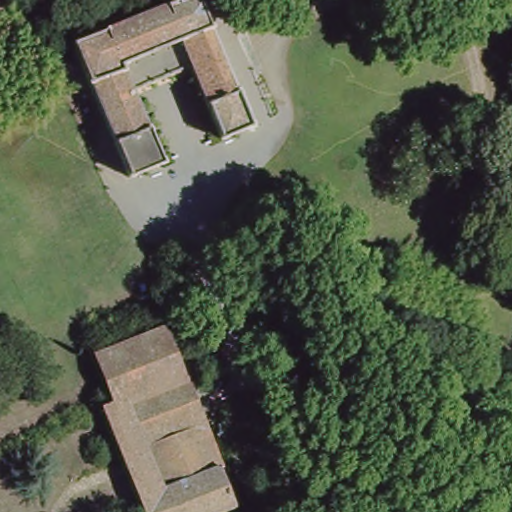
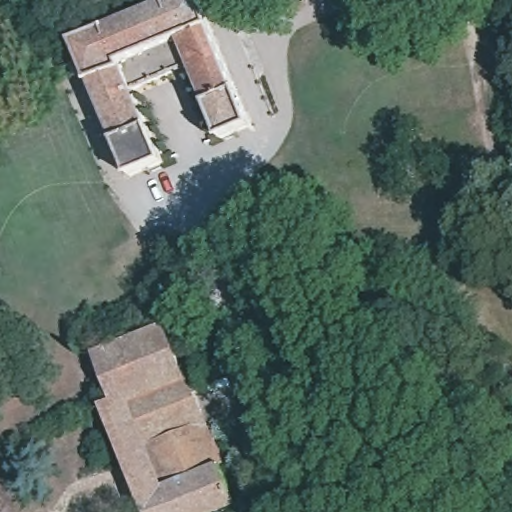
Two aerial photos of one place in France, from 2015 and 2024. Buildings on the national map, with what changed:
unchanged [(126,175),(70,41),(166,0),(195,0),(247,122),(218,135),(187,64),(130,88),(160,160),(126,175)]
unchanged [(107,407),(121,402),(100,352),(166,326),(238,502),(214,512),(151,512),(107,407)]

